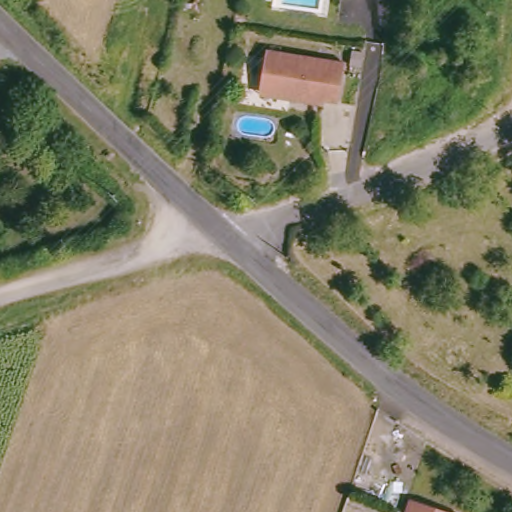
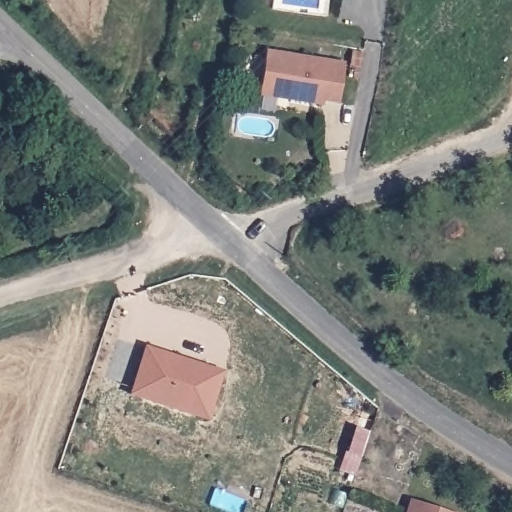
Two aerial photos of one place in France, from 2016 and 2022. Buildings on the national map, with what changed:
unchanged [(362,49),(360,64),(348,61),(350,47),(362,49)]
unchanged [(320,58),(342,62),(335,102),(321,99),(320,104),(312,102),(287,97),(287,93),(257,87),(265,48),(320,58)]
new [(146,347),(175,357),(172,363),(203,373),(206,367),(222,372),(206,420),(130,395),(146,347)]
unchanged [(411,496),(462,512),(407,512),(411,496)]

